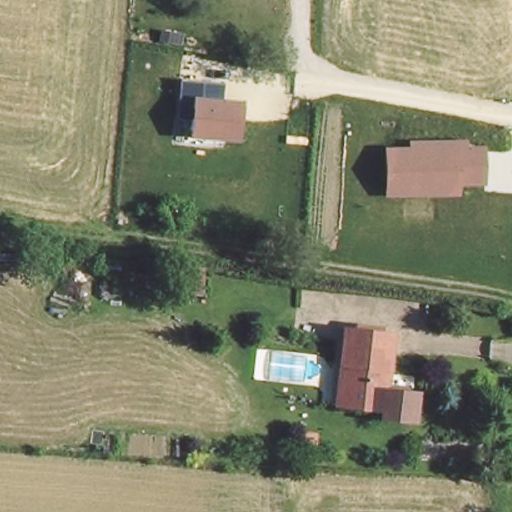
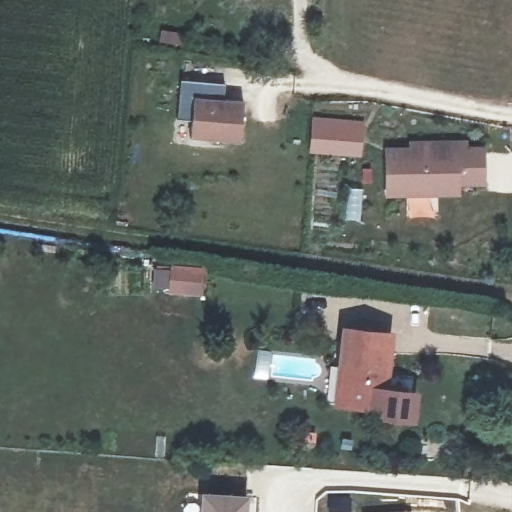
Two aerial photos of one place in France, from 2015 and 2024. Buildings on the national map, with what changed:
unchanged [(246,142),(188,141),(190,120),(179,119),(182,79),(221,81),(220,95),(249,97),(246,142)]
new [(311,115),(366,119),(362,157),(308,152),(311,115)]
unchanged [(409,146),(409,141),(465,139),(466,146),(483,146),(485,185),(460,186),(460,195),(385,196),(385,147),(409,146)]
new [(346,186),(363,188),(360,221),(343,220),(346,186)]
unchanged [(201,288),(165,286),(167,259),(204,263),(201,288)]
unchanged [(340,361),(342,323),(390,327),(386,386),(411,389),(409,416),(385,414),(381,404),(349,403),(338,403),(340,361)]
new [(245,494),(244,512),(199,512),(200,492),(245,494)]
new [(410,512),(389,512),(410,510),(410,512)]

